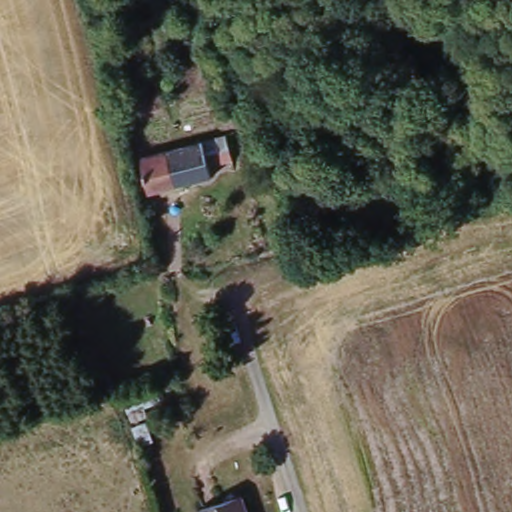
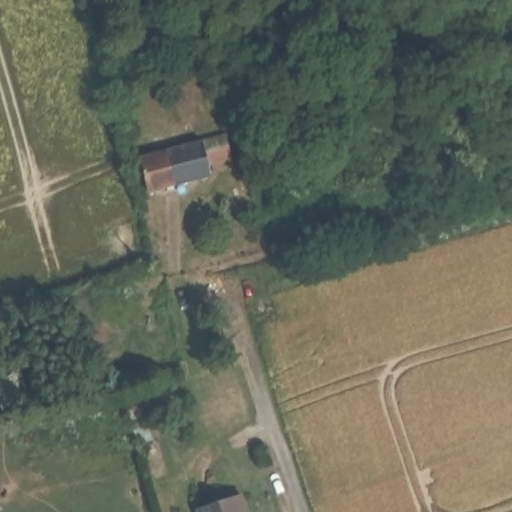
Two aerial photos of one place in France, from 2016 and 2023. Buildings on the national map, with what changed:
unchanged [(429,63),(439,95),(381,117),(369,84),(429,63)]
unchanged [(226,141),(234,173),(151,194),(141,162),(226,141)]
unchanged [(121,398),(158,384),(167,408),(129,424),(121,398)]
unchanged [(251,512),(218,512),(247,502),(251,512)]

